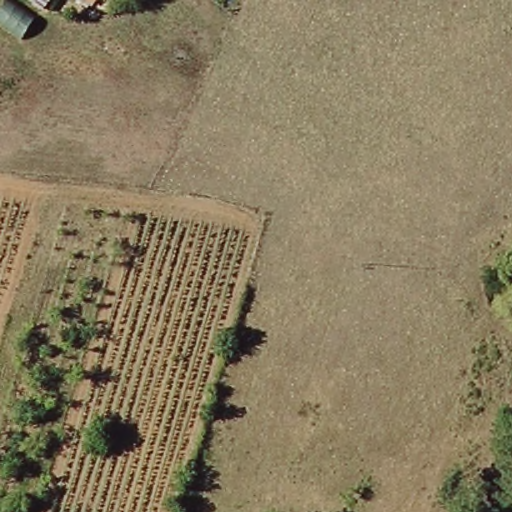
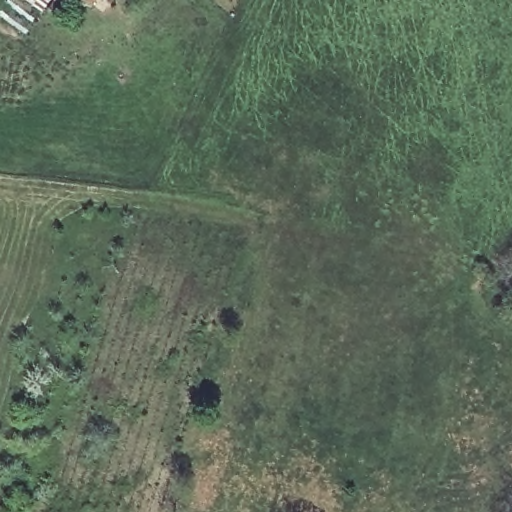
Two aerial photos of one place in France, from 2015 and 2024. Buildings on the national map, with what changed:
unchanged [(49,0),(40,12),(23,0),(49,0)]
unchanged [(94,0),(88,7),(79,0),(94,0)]

